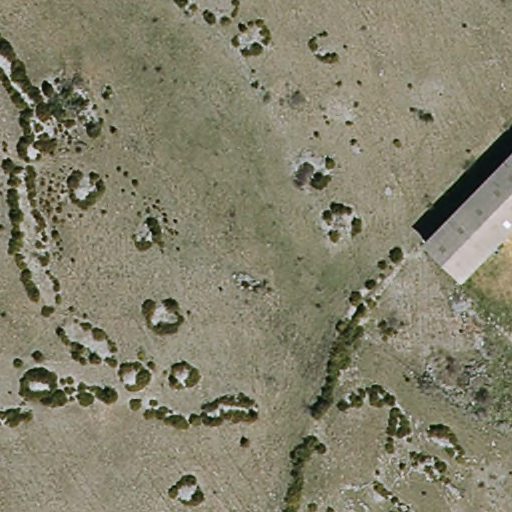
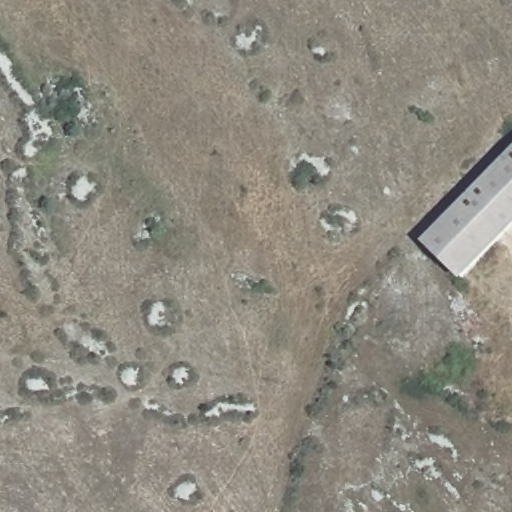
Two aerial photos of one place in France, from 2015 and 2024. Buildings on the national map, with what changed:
unchanged [(423,235),(512,152),(512,225),(461,276),(423,235)]

